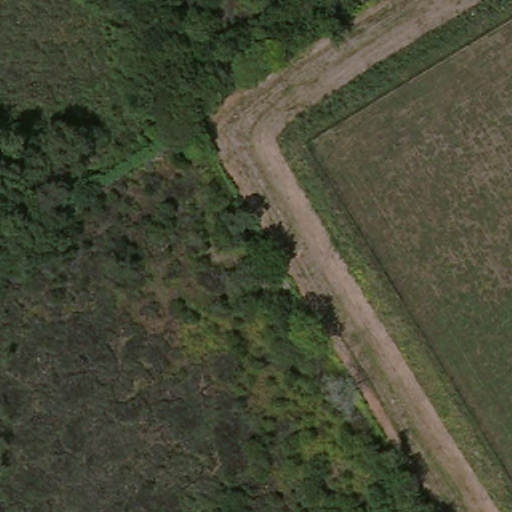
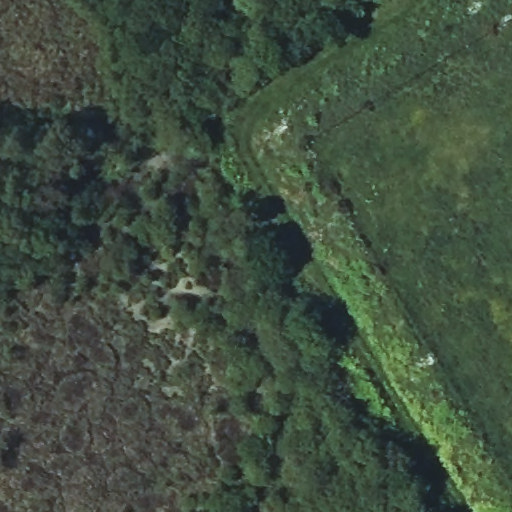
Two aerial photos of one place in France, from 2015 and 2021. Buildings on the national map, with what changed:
[]

